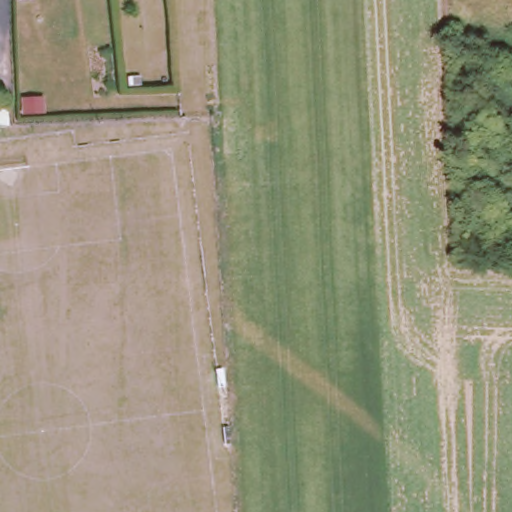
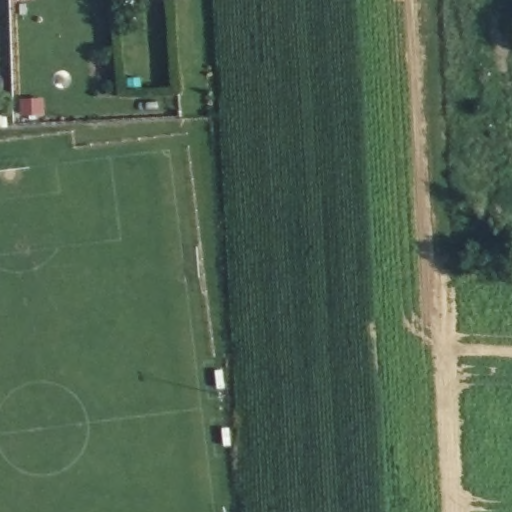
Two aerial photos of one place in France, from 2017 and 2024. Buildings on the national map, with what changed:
unchanged [(24,96),(43,97),(43,110),(23,110),(24,96)]
unchanged [(5,109),(6,124),(0,124),(0,109),(5,109)]

